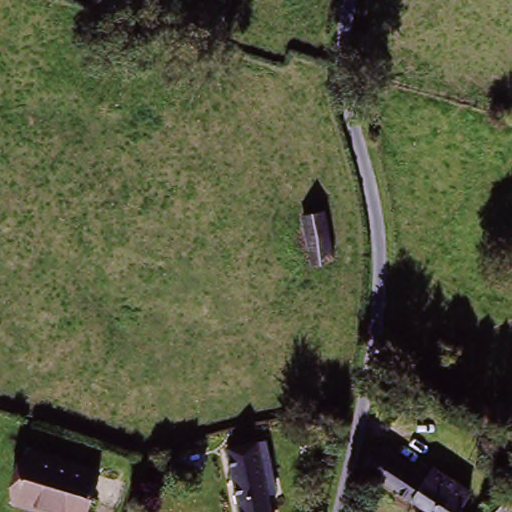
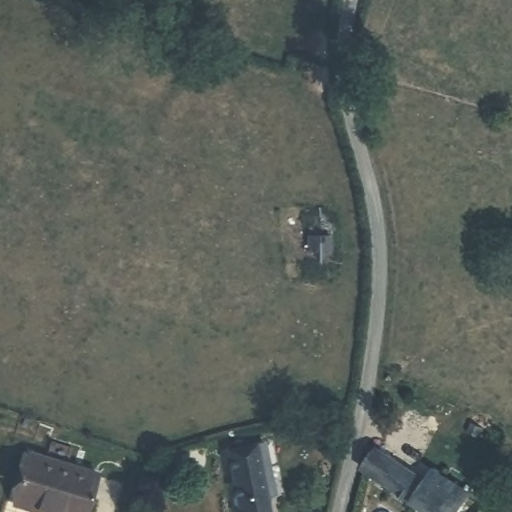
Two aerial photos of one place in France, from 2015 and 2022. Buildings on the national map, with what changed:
unchanged [(300,219),(319,216),(327,263),(308,265),(300,219)]
unchanged [(266,468),(270,497),(262,499),(264,512),(237,512),(229,449),(254,444),(258,470),(266,468)]
unchanged [(358,472),(372,451),(431,490),(439,477),(466,496),(457,509),(458,512),(419,512),(361,474),(358,472)]
unchanged [(25,453),(95,473),(85,512),(25,512),(11,508),(25,453)]

